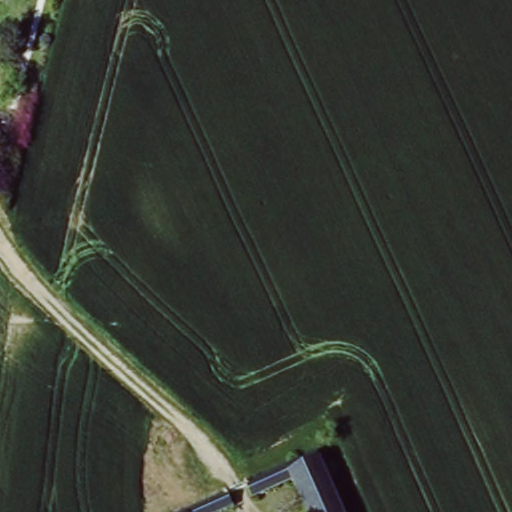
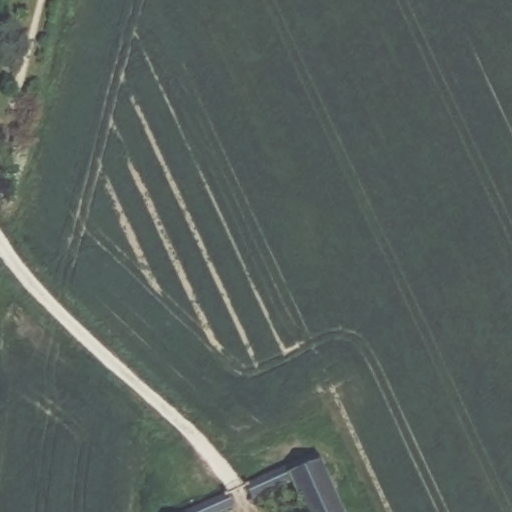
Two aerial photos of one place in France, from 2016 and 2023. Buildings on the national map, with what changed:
unchanged [(260,506),(254,490),(326,459),(349,512),(313,512),(302,487),(260,506)]
unchanged [(209,512),(227,504),(229,503),(233,512),(209,512)]

